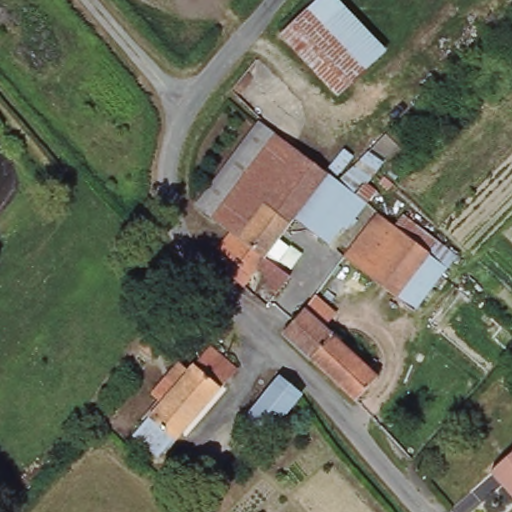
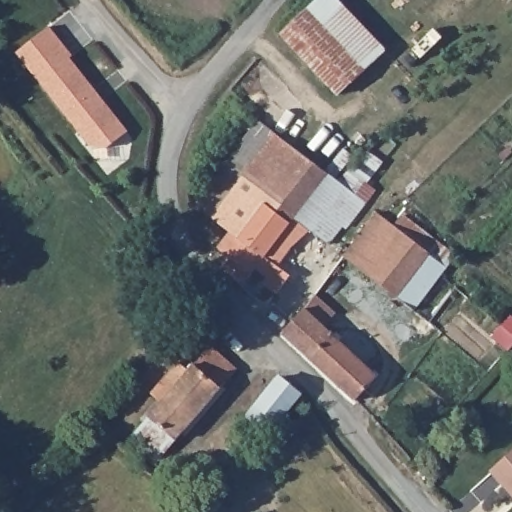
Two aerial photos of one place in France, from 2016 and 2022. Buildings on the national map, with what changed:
unchanged [(332,0),(379,49),(336,90),(281,32),(316,0),(332,0)]
new [(73,54),(69,56),(129,129),(106,147),(91,143),(16,52),(50,24),(73,54)]
unchanged [(225,254),(214,243),(225,228),(194,200),(260,116),(326,170),(292,214),(285,223),(260,204),(236,234),(260,255),(250,270),(237,288),(225,278),(219,279),(211,270),(225,254)]
unchanged [(332,174),(353,191),(362,199),(343,223),(338,219),(323,239),(292,214),(326,170),(332,174)]
unchanged [(259,277),(250,270),(260,255),(236,234),(260,204),(285,223),(274,237),(280,242),(265,262),(283,276),(269,294),(255,282),(259,277)]
unchanged [(397,227),(430,253),(410,279),(397,298),(345,257),(358,240),(379,213),(397,227)]
unchanged [(397,227),(405,217),(457,258),(428,294),(410,279),(430,253),(397,227)]
unchanged [(305,308),(377,375),(355,400),(282,333),(305,308)]
unchanged [(160,461),(131,435),(157,401),(151,395),(180,360),(190,368),(210,345),(239,368),(160,461)]
unchanged [(312,395),(306,403),(275,439),(249,418),(289,370),(312,395)]
unchanged [(512,500),(490,474),(512,456),(512,500)]

